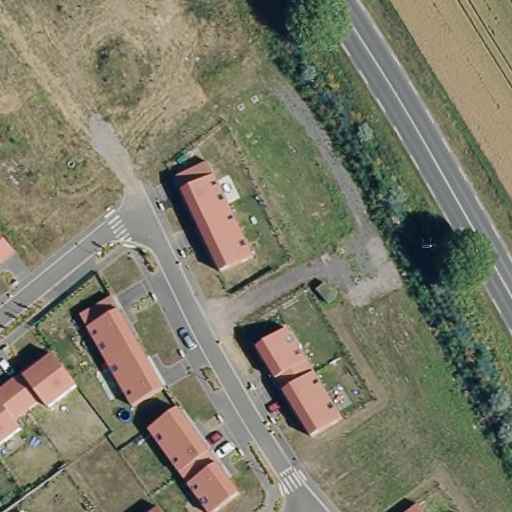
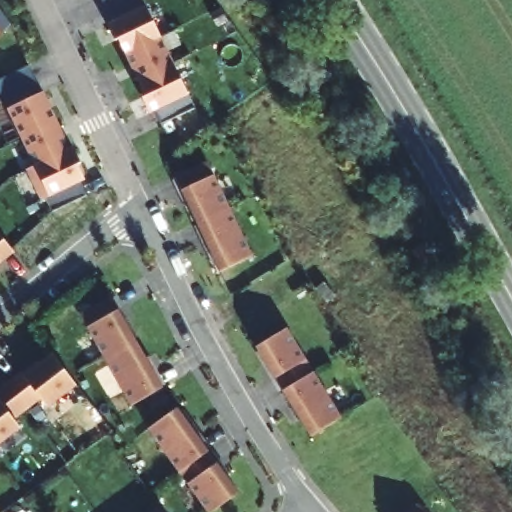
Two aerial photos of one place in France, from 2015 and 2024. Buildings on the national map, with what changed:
new [(157,111),(152,114),(143,99),(144,93),(121,46),(116,41),(109,23),(112,21),(102,0),(145,0),(194,106),(163,123),(157,111)]
new [(227,19),(219,24),(213,14),(221,9),(227,19)]
new [(0,30),(0,10),(9,24),(0,30)]
new [(70,148),(73,147),(86,181),(80,184),(85,194),(53,209),(47,198),(41,201),(27,170),(35,164),(0,89),(0,80),(30,67),(70,148)]
unchanged [(248,254),(211,271),(169,176),(205,159),(248,254)]
unchanged [(0,264),(0,235),(14,253),(0,264)]
unchanged [(163,384),(129,405),(78,312),(113,293),(163,384)]
unchanged [(336,415),(301,435),(251,347),(286,327),(336,415)]
unchanged [(11,421),(18,430),(0,444),(0,384),(44,349),(73,386),(42,409),(36,402),(11,421)]
unchanged [(241,491),(209,512),(204,512),(141,430),(179,405),(241,491)]
unchanged [(423,512),(401,512),(416,502),(423,512)]
unchanged [(153,504),(159,512),(142,512),(153,504)]

